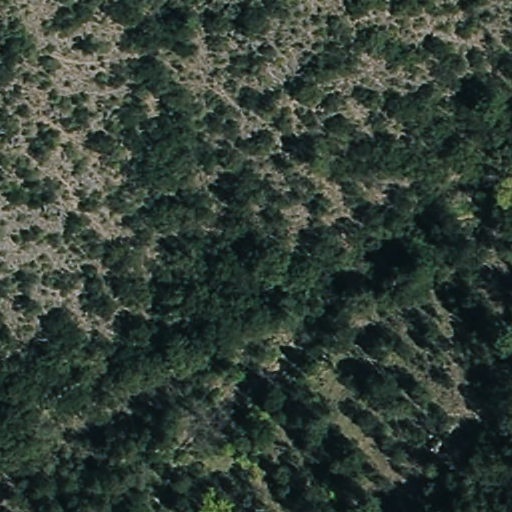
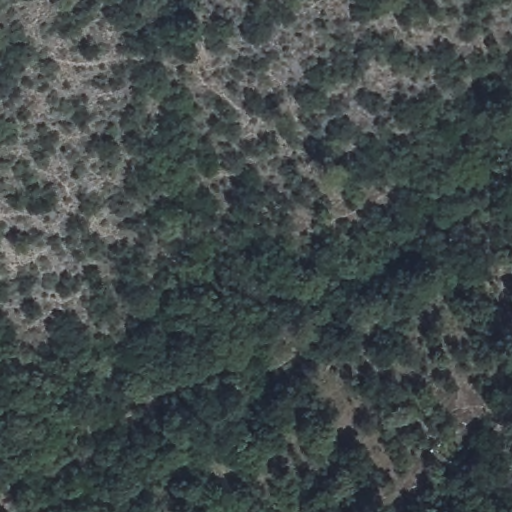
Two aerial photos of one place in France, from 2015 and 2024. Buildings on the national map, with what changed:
unchanged [(332,355),(324,361),(317,352),(327,347),(332,355)]

